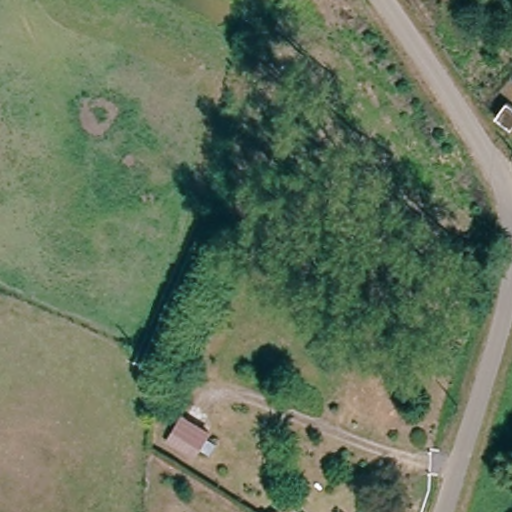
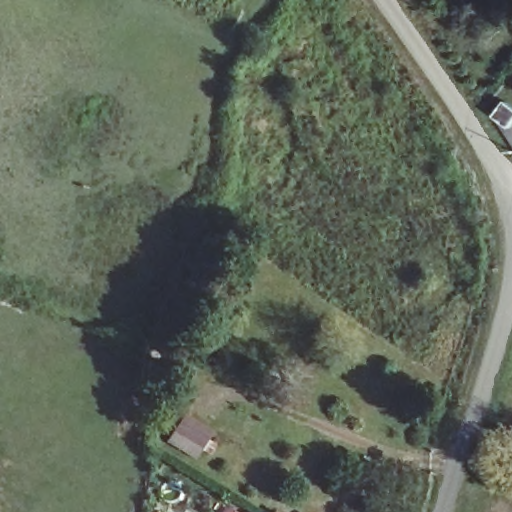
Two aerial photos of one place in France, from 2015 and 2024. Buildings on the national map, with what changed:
unchanged [(210,431),(199,455),(172,441),(184,416),(210,431)]

